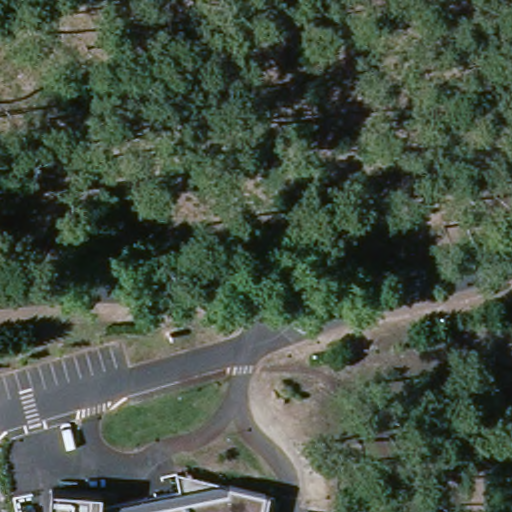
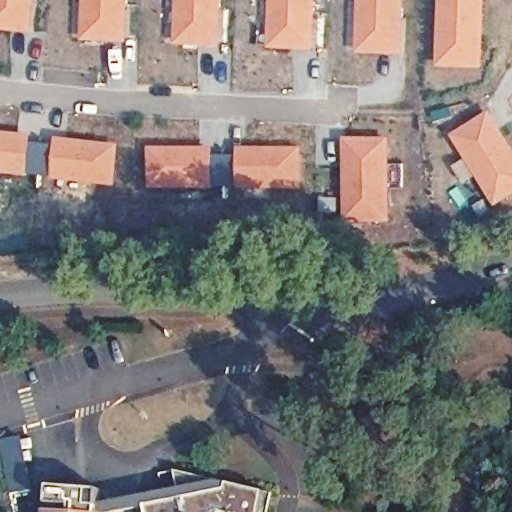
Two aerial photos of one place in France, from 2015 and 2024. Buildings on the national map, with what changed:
new [(34,0),(30,35),(0,31),(0,0),(34,0)]
new [(128,0),(125,43),(76,40),(79,0),(128,0)]
new [(222,0),(221,48),(170,45),(173,0),(222,0)]
new [(316,0),(314,51),(264,49),(267,0),(316,0)]
new [(403,0),(401,56),(352,53),(354,0),(403,0)]
new [(436,68),(439,0),(486,0),(484,69),(436,68)]
new [(512,197),(495,208),(450,136),(489,113),(512,148),(512,197)]
new [(317,197),(339,198),(340,137),(387,138),(387,164),(402,164),(400,187),(388,187),(388,222),(340,221),(340,217),(317,217),(317,197)]
new [(25,141),(24,149),(53,152),(54,145),(113,151),(109,187),(0,174),(0,138),(25,141)]
new [(235,146),(301,146),(300,190),(235,189),(235,146)]
new [(145,147),(212,147),(212,190),(145,190),(145,147)]
new [(34,490),(11,495),(0,442),(23,437),(34,490)]
unchanged [(142,495),(177,488),(174,470),(227,482),(227,489),(144,505),(142,495)]
unchanged [(227,489),(227,482),(262,491),(260,512),(146,512),(144,505),(227,489)]
unchanged [(77,509),(53,507),(55,489),(107,494),(105,512),(77,512),(77,509)]

